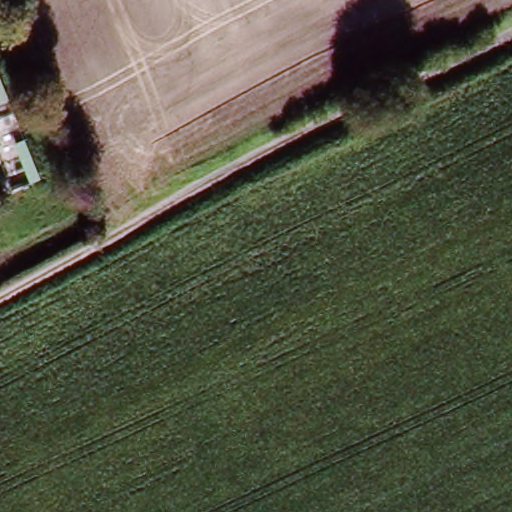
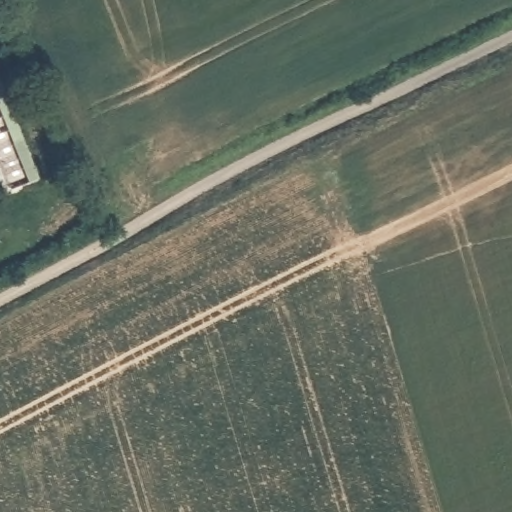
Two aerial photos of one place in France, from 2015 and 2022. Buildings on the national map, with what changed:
unchanged [(0,8),(0,0),(1,0),(3,7),(0,8)]

